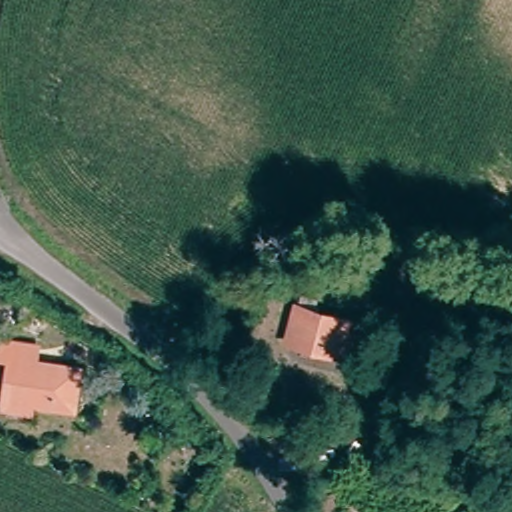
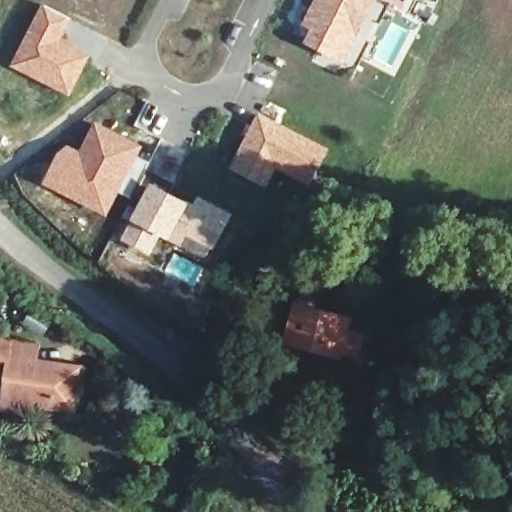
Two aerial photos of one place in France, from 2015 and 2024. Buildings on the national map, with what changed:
new [(346,65),(302,42),(308,30),(300,26),(313,0),(377,0),(346,65)]
new [(403,5),(395,0),(406,0),(403,5)]
new [(42,2),(72,19),(62,37),(92,52),(70,97),(9,66),(42,2)]
new [(258,112),(330,147),(309,188),(277,171),(267,189),(228,169),(258,112)]
new [(64,142),(79,149),(94,120),(144,145),(129,177),(107,217),(42,183),(64,142)]
new [(151,181),(191,202),(169,241),(161,236),(149,256),(119,239),(129,220),(151,181)]
new [(191,202),(198,193),(234,213),(207,260),(169,241),(191,202)]
unchanged [(296,338),(297,312),(349,317),(345,357),(311,353),(295,351),(296,338)]
unchanged [(9,417),(9,406),(10,361),(1,361),(1,345),(36,345),(37,365),(81,368),(78,410),(35,407),(34,418),(9,417)]

